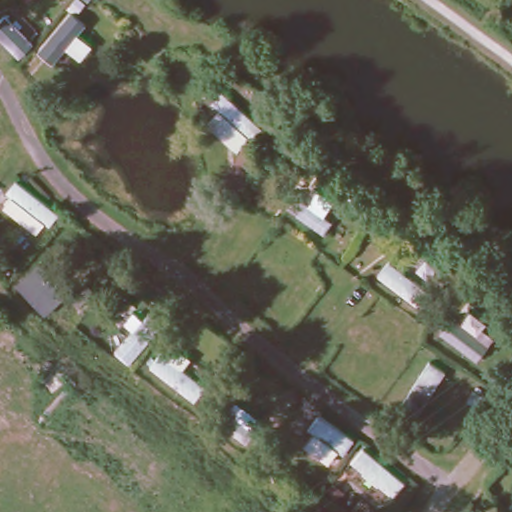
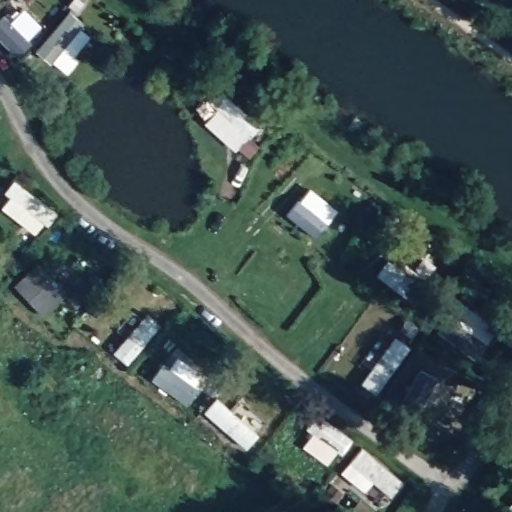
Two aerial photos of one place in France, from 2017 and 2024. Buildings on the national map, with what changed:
unchanged [(70,297),(45,320),(16,287),(43,266),(70,297)]

